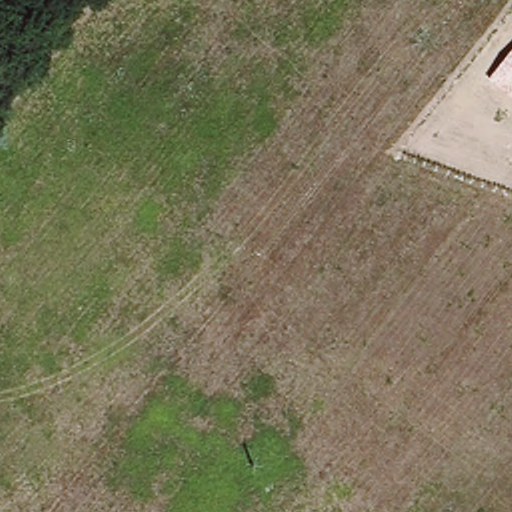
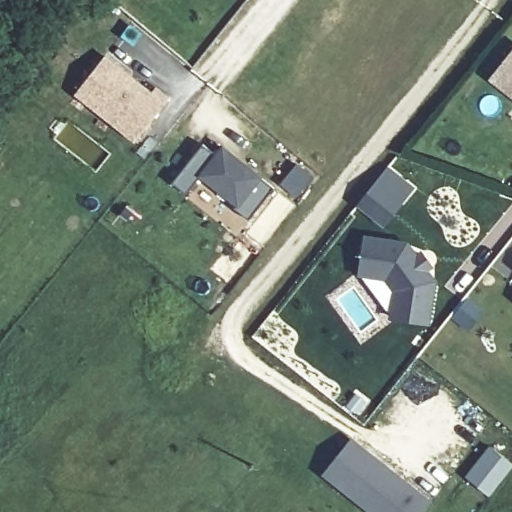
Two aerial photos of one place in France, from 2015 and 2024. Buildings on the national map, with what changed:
unchanged [(512,51),(512,98),(489,79),(512,51)]
new [(101,57),(147,93),(150,89),(164,100),(131,142),(71,95),(101,57)]
new [(213,154),(219,146),(226,152),(272,186),(248,219),(233,207),(236,203),(199,176),(185,195),(170,184),(200,144),(213,154)]
new [(386,172),(411,193),(382,228),(357,207),(386,172)]
new [(406,247),(416,261),(421,257),(430,270),(425,273),(433,285),(428,325),(391,320),(395,293),(386,282),(360,279),(366,241),(406,247)]
new [(350,445),(426,505),(421,512),(367,512),(324,478),(350,445)]

